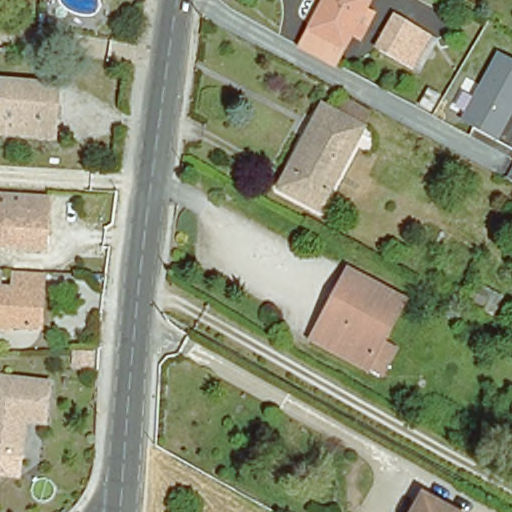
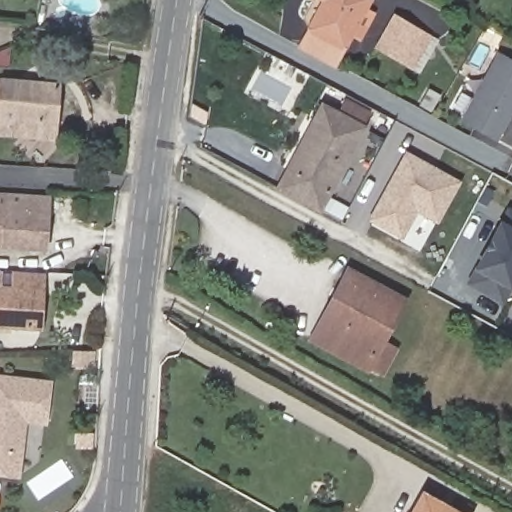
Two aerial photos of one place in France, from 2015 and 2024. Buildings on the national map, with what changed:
unchanged [(320,52),(297,40),(319,0),(363,0),(362,2),(370,7),(357,32),(348,28),(340,43),(332,60),(320,52)]
unchanged [(380,47),(398,16),(439,40),(421,70),(380,47)]
unchanged [(498,137),(462,120),(465,112),(458,108),(467,92),(475,96),(498,50),(512,57),(512,114),(498,137)]
unchanged [(54,135),(0,132),(0,81),(56,84),(54,135)]
unchanged [(348,101),(371,114),(365,126),(321,209),(281,186),(312,127),(325,105),(332,108),(342,113),(348,101)]
new [(458,182),(435,221),(417,214),(401,240),(370,224),(405,151),(458,182)]
unchanged [(46,247),(0,245),(0,193),(49,195),(46,247)]
new [(508,206),(512,208),(512,280),(500,303),(467,285),(500,221),(508,206)]
unchanged [(383,375),(369,367),(322,341),(346,294),(340,290),(350,272),(403,300),(383,340),(397,348),(383,375)]
unchanged [(15,282),(42,283),(40,335),(0,334),(0,296),(14,296),(15,282)]
unchanged [(0,460),(0,383),(50,388),(46,427),(25,425),(25,438),(21,462),(0,460)]
unchanged [(406,512),(418,490),(457,512),(406,512)]

